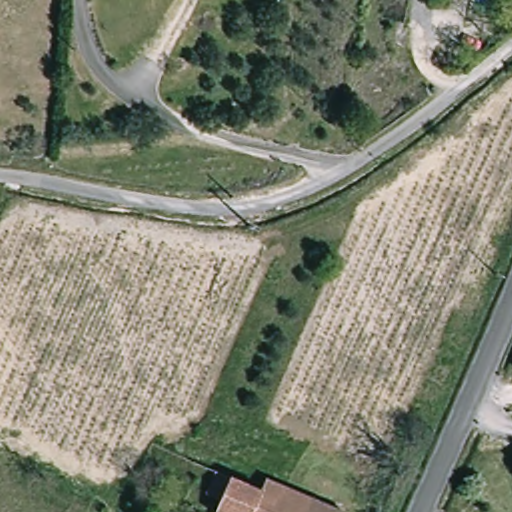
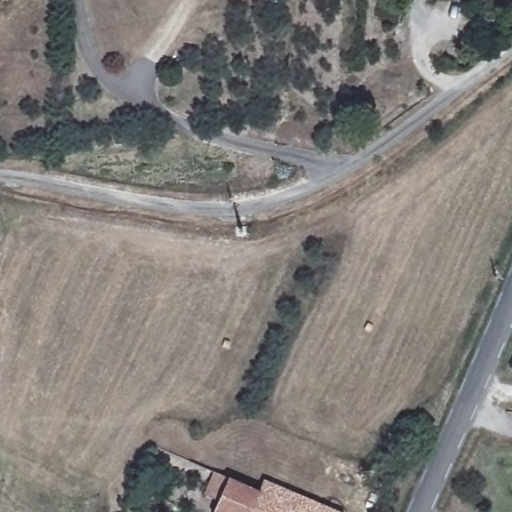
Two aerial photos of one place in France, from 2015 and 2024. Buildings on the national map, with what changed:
unchanged [(202,496),(212,474),(257,495),(263,480),(331,512),(220,512),(223,506),(202,496)]

